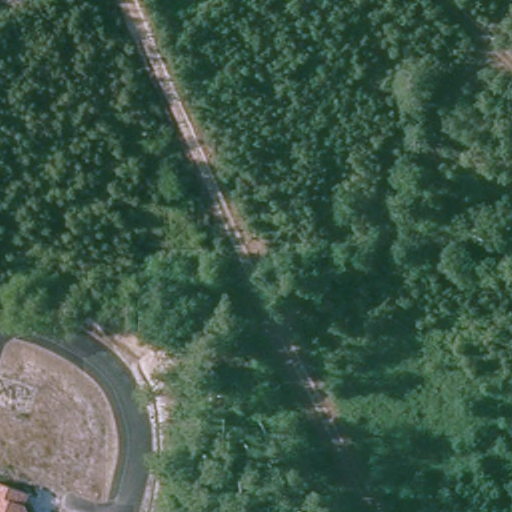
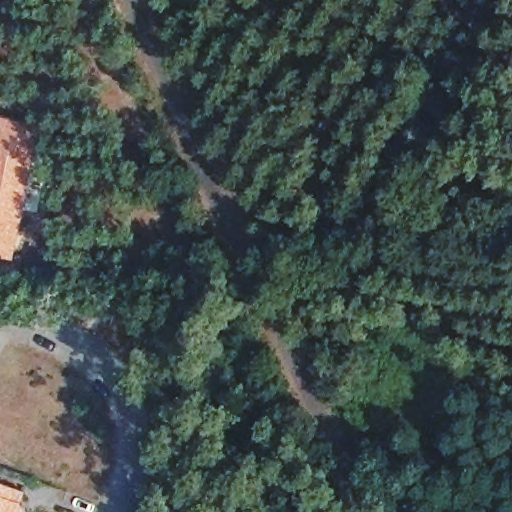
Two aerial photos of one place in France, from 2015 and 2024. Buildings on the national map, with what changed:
new [(35,170),(14,262),(0,258),(0,117),(46,126),(35,170)]
unchanged [(0,483),(27,491),(23,503),(26,508),(25,512),(0,512),(0,483)]

